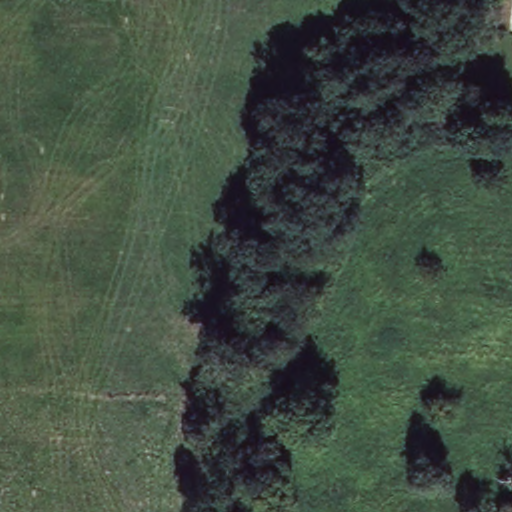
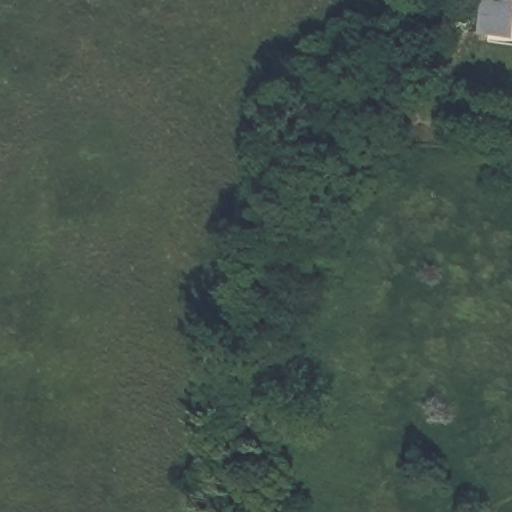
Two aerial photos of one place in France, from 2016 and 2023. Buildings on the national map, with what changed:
[]

